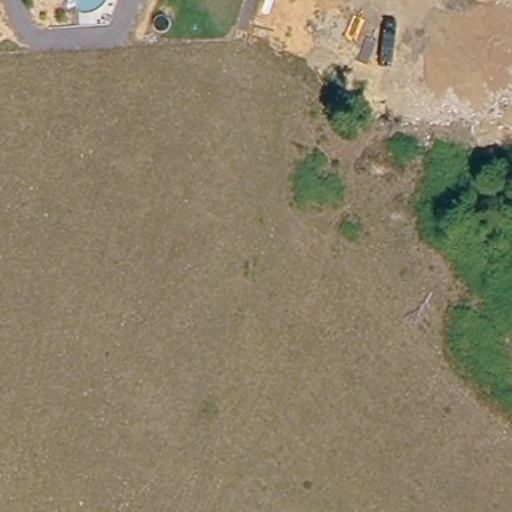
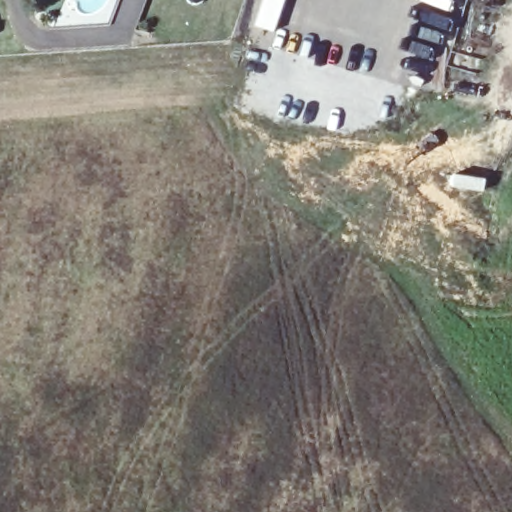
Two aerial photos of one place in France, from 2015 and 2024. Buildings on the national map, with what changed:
new [(274,32),(254,25),(263,0),(285,0),(274,32)]

